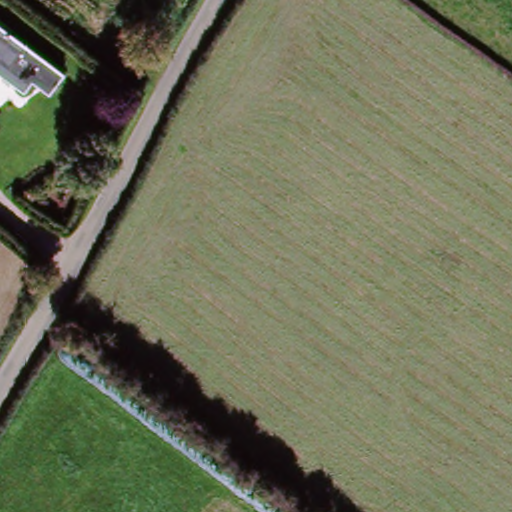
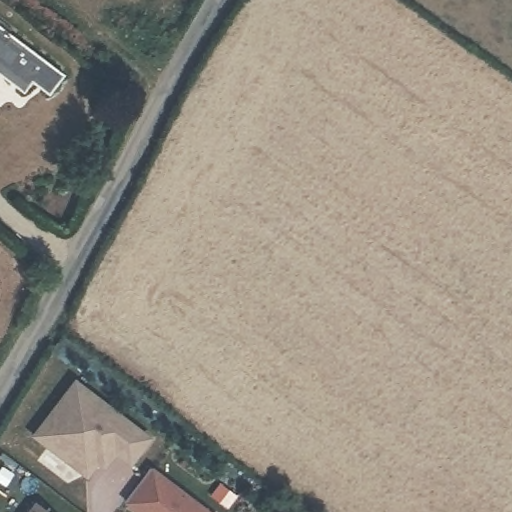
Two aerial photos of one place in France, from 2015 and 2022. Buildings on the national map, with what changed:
unchanged [(75,84),(56,109),(38,96),(30,106),(0,83),(0,26),(75,84)]
new [(154,437),(132,466),(132,465),(115,453),(102,470),(97,465),(87,476),(32,435),(75,378),(154,437)]
new [(152,471),(207,512),(139,512),(127,503),(152,471)]
new [(35,503),(46,512),(28,512),(35,503)]

